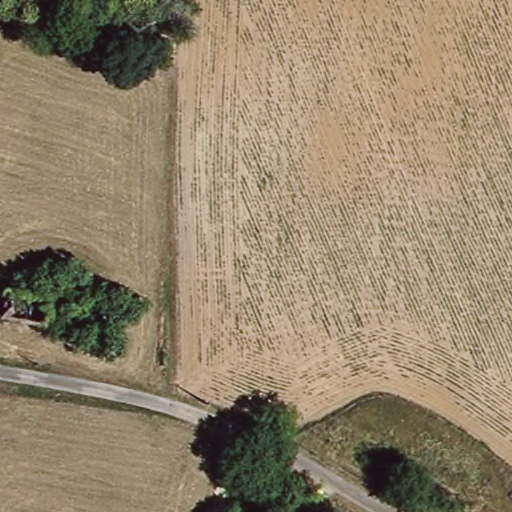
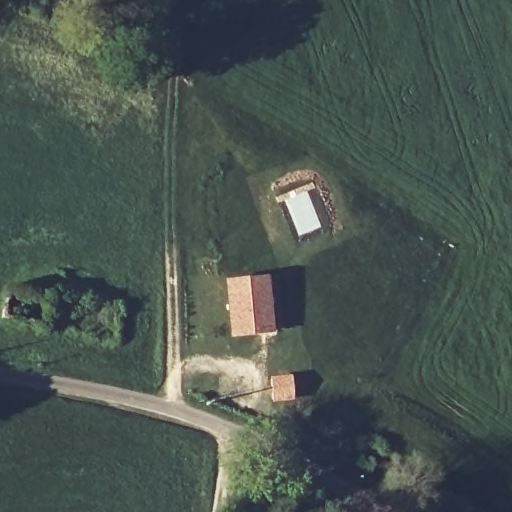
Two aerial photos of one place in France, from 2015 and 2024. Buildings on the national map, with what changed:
new [(266,278),(271,331),(234,336),(228,282),(266,278)]

